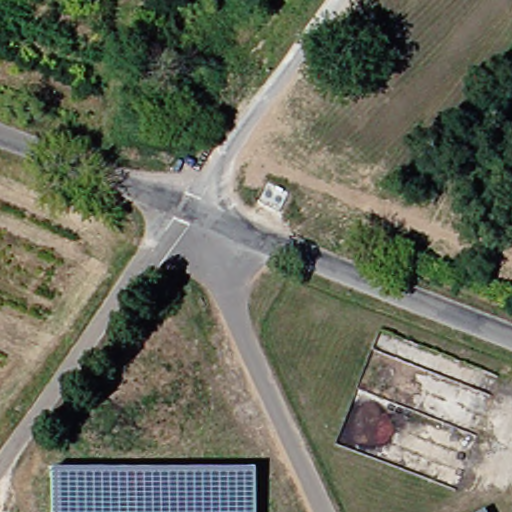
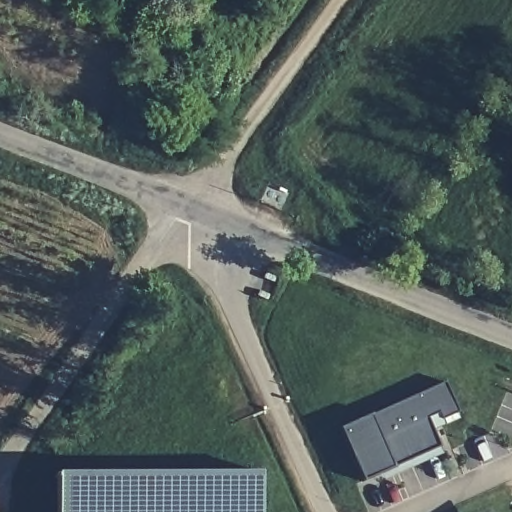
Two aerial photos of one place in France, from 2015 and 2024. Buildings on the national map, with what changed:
unchanged [(480,181),(450,236),(428,225),(457,169),(480,181)]
new [(340,429),(370,416),(412,397),(443,383),(457,412),(442,420),(438,411),(425,418),(437,447),(391,467),(363,480),(340,429)]
unchanged [(57,475),(259,474),(259,512),(57,512),(57,475)]

